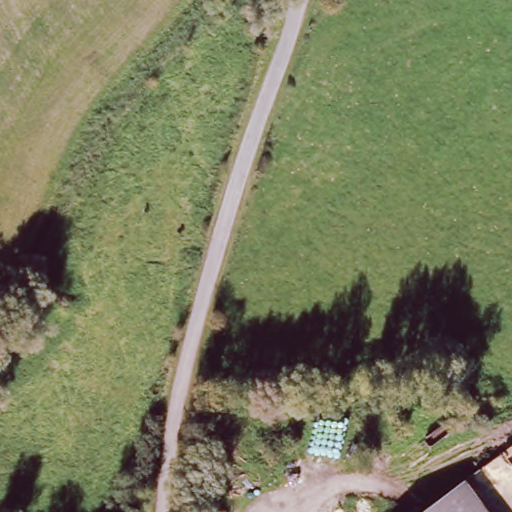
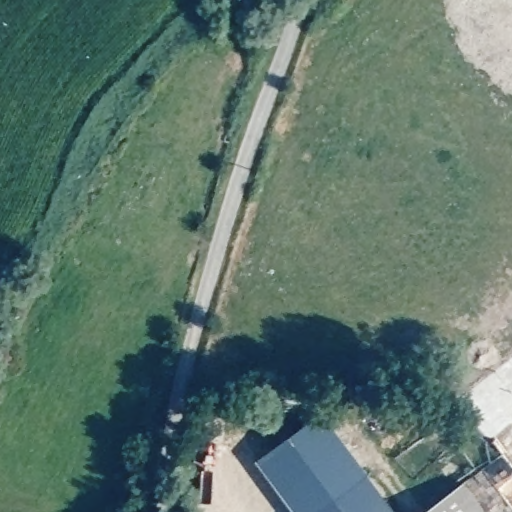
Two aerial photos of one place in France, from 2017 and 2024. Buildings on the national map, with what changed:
new [(320,410),(396,512),(297,512),(257,460),(320,410)]
unchanged [(481,512),(427,512),(462,487),(481,512)]

